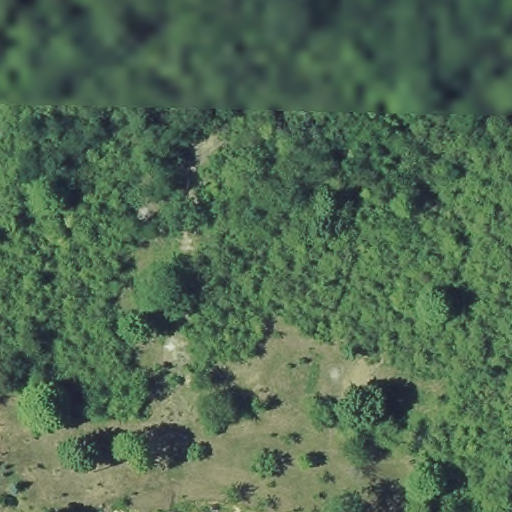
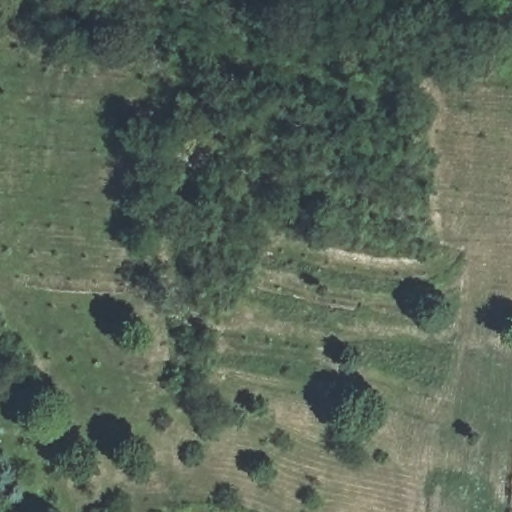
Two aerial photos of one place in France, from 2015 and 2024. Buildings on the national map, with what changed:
[]

